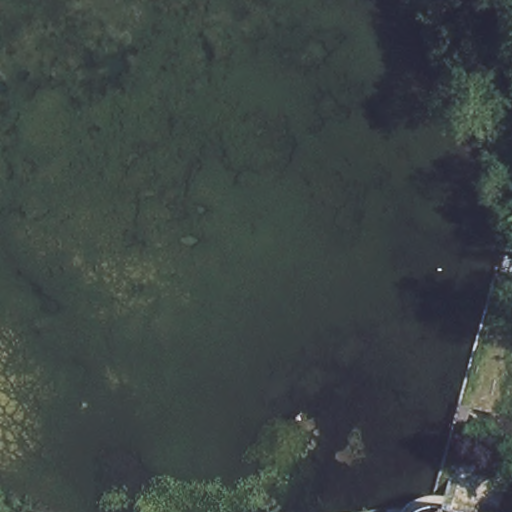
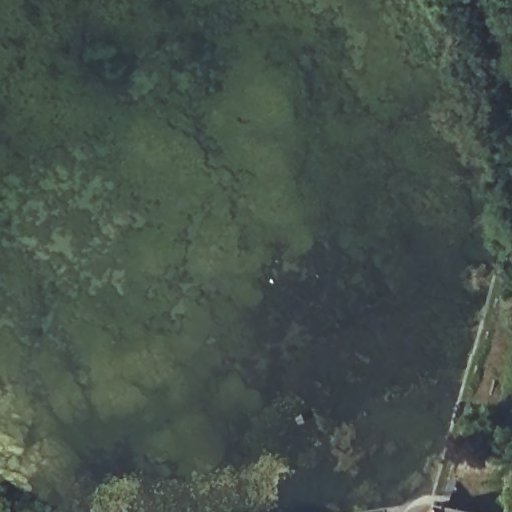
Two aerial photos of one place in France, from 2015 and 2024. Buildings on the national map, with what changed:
unchanged [(424,510),(434,507),(446,507),(473,512),(421,512),(424,510)]

